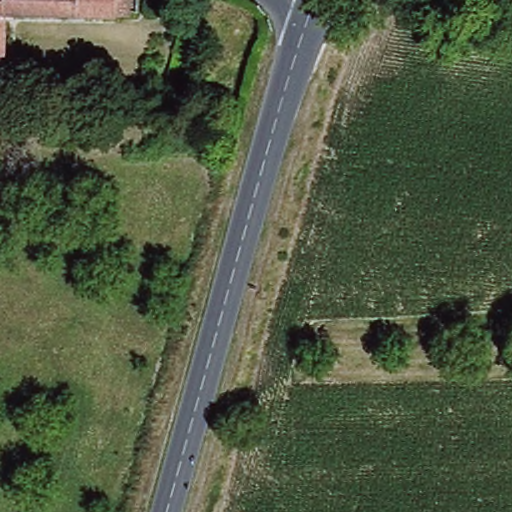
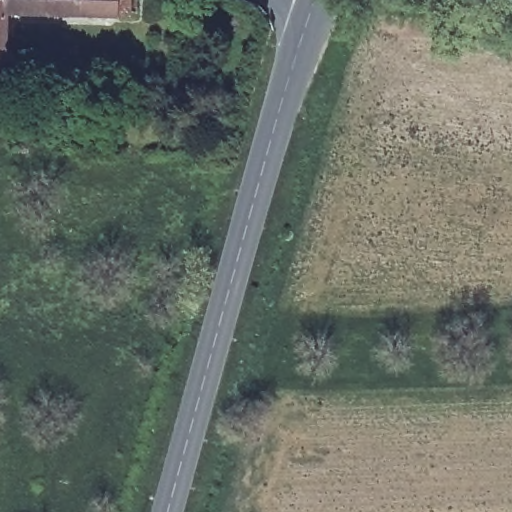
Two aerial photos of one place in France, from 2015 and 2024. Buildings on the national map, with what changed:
unchanged [(3,19),(2,63),(0,63),(0,0),(112,0),(111,19),(3,19)]
unchanged [(0,118),(0,63),(2,63),(0,118)]

